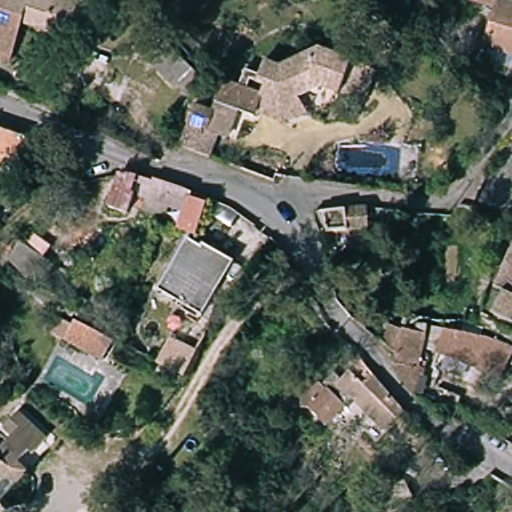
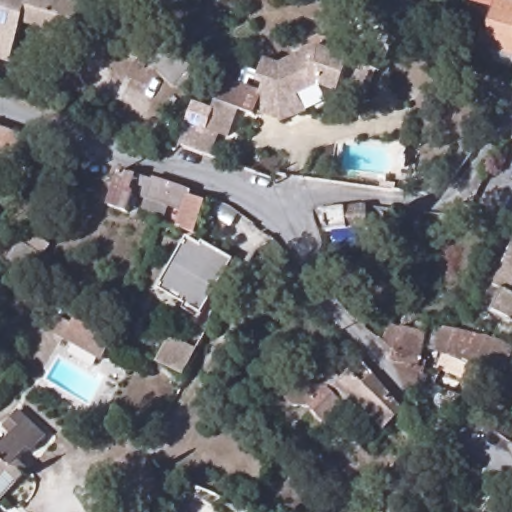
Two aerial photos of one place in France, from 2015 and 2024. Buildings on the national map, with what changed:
unchanged [(23,28),(15,60),(0,55),(0,0),(78,0),(85,2),(78,25),(74,41),(23,28)]
unchanged [(493,8),(470,0),(502,0),(512,3),(512,54),(482,45),(493,8)]
unchanged [(288,129),(258,116),(256,121),(237,113),(227,137),(219,134),(210,156),(178,147),(195,107),(212,114),(225,82),(240,89),(247,72),(261,78),(268,62),(281,67),(327,57),(354,68),(342,98),(324,91),(302,96),(308,124),(288,129)]
unchanged [(196,88),(195,93),(187,106),(172,94),(169,97),(144,75),(156,62),(164,68),(171,60),(194,82),(196,88)]
unchanged [(49,144),(58,148),(50,172),(31,168),(16,164),(18,159),(0,155),(0,127),(1,128),(2,123),(52,138),(49,144)]
unchanged [(150,177),(150,176),(200,193),(198,198),(215,203),(204,236),(185,230),(184,229),(190,213),(177,209),(172,220),(149,211),(154,201),(143,196),(135,215),(116,207),(127,173),(150,177)]
unchanged [(317,206),(351,206),(364,210),(365,240),(335,239),(335,233),(325,232),(317,206)]
unchanged [(229,255),(198,310),(155,282),(183,236),(200,246),(204,240),(229,255)]
unchanged [(493,319),(499,300),(491,298),(499,274),(506,251),(508,245),(512,247),(512,282),(507,300),(512,301),(512,325),(493,319)]
unchanged [(99,364),(49,332),(57,320),(73,330),(78,321),(113,343),(99,364)]
unchanged [(421,357),(418,372),(414,391),(412,401),(407,397),(400,388),(384,354),(380,346),(383,338),(386,324),(409,333),(412,322),(427,329),(421,357)]
unchanged [(435,363),(437,356),(427,354),(432,332),(442,334),(443,329),(483,339),(499,349),(494,370),(492,378),(435,363)]
unchanged [(178,374),(154,359),(165,341),(189,356),(178,374)]
unchanged [(384,429),(355,397),(344,407),(325,423),(311,407),(292,411),(280,401),(296,386),(305,384),(313,394),(337,370),(346,381),(360,369),(369,381),(373,377),(381,388),(403,412),(384,429)]
unchanged [(6,426),(0,419),(0,418),(15,405),(42,437),(27,451),(23,445),(9,456),(19,468),(0,484),(0,431),(6,426)]
unchanged [(403,485),(407,492),(413,503),(398,512),(391,512),(381,495),(403,485)]

